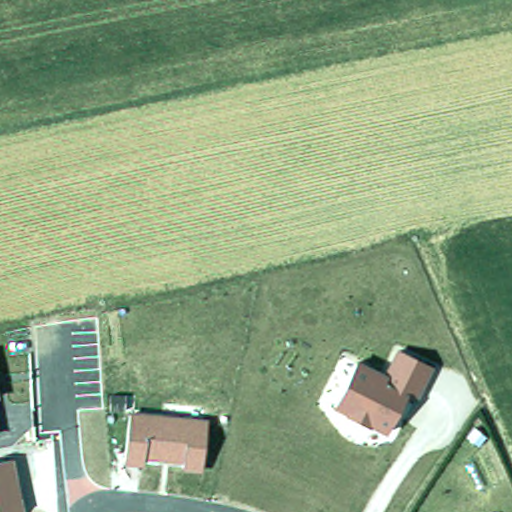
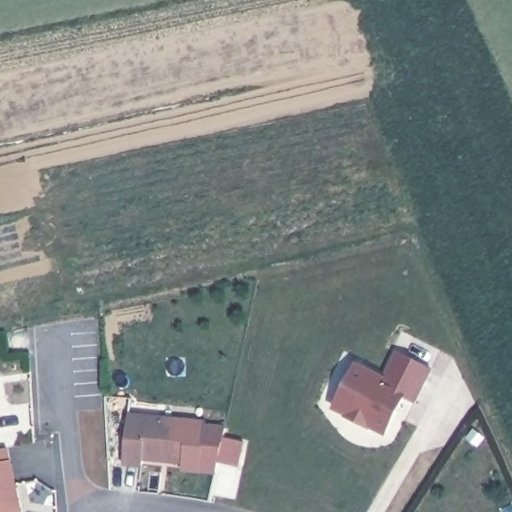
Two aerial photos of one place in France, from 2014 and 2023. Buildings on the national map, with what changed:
unchanged [(384,374),(397,347),(433,366),(416,398),(405,393),(383,435),(335,409),(359,362),(384,374)]
unchanged [(205,418),(200,473),(182,470),(182,462),(148,460),(147,466),(125,463),(130,413),(205,418)]
unchanged [(25,510),(23,512),(0,512),(0,461),(16,459),(25,510)]

